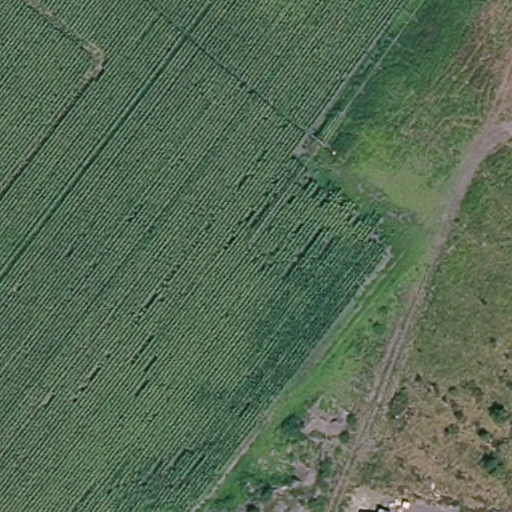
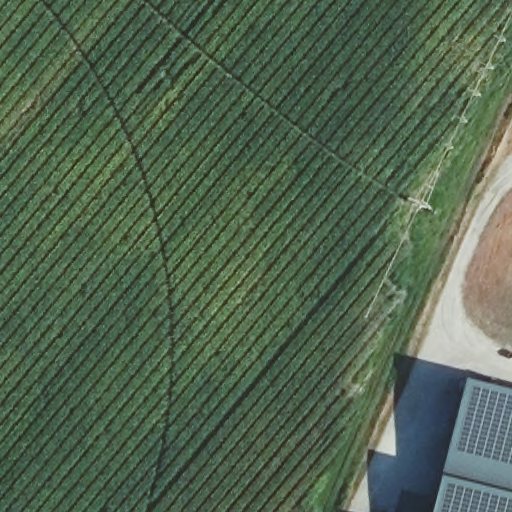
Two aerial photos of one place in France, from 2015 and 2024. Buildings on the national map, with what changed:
new [(512,388),(512,512),(433,512),(467,376),(512,388)]

